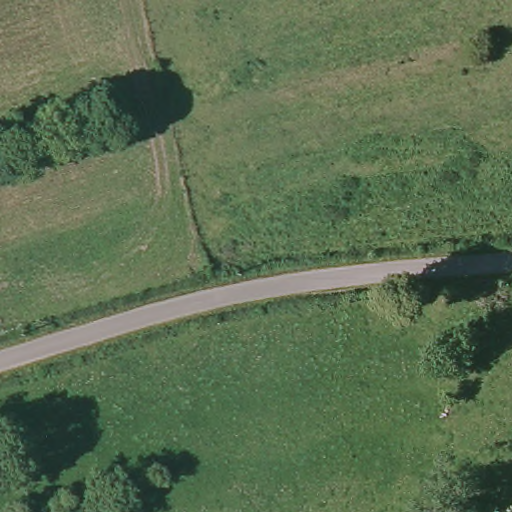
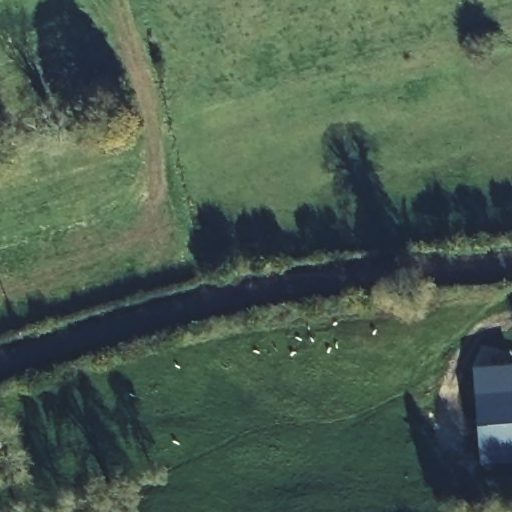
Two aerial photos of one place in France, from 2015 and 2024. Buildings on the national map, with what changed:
new [(483,464),(474,368),(512,365),(512,462),(483,464)]

